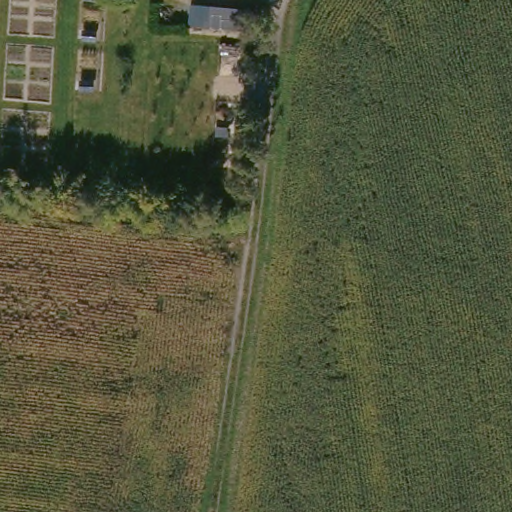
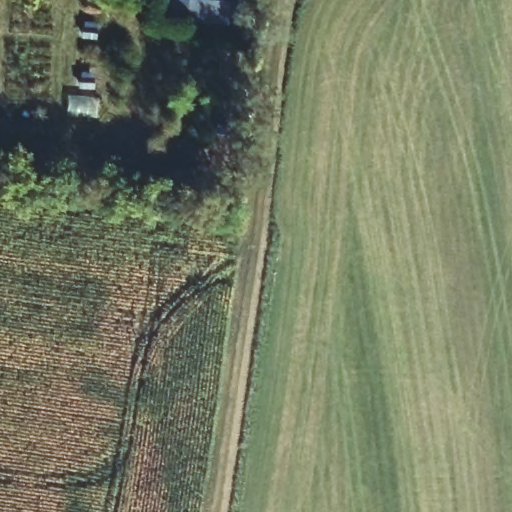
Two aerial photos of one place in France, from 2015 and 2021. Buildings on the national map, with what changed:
unchanged [(239,7),(237,29),(189,23),(191,3),(239,7)]

